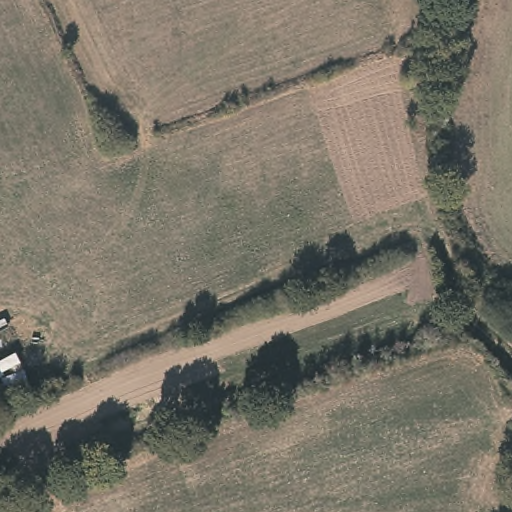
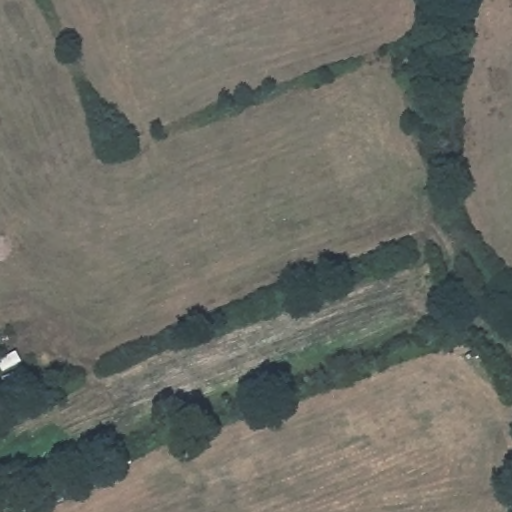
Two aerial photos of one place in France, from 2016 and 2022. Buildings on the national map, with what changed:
unchanged [(34,388),(11,395),(5,377),(26,368),(34,388)]

